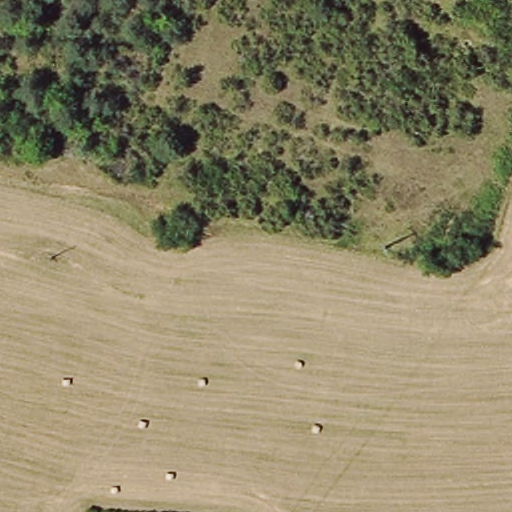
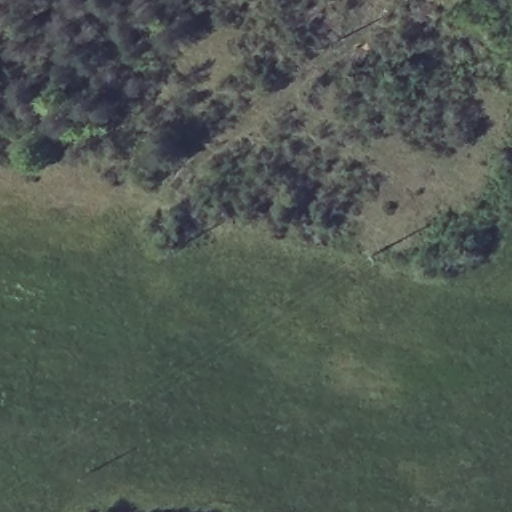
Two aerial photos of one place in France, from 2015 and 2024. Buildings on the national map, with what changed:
[]

